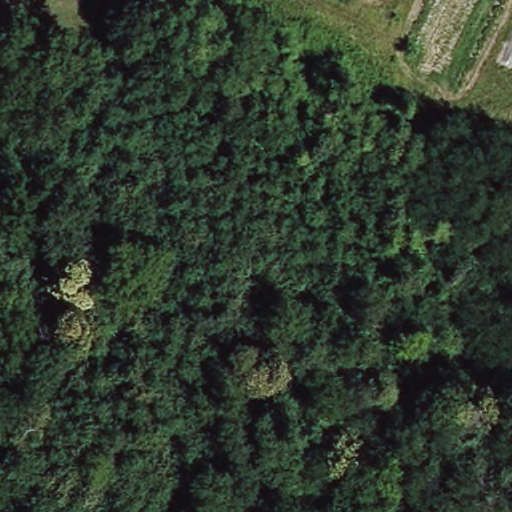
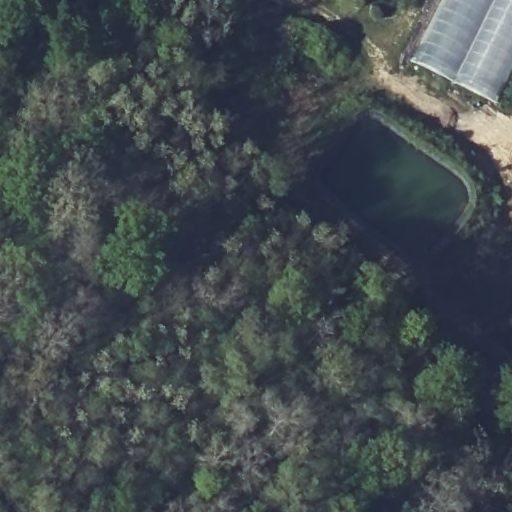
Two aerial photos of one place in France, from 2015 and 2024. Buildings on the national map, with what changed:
new [(512,0),(512,70),(496,105),(413,63),(444,0),(512,0)]

